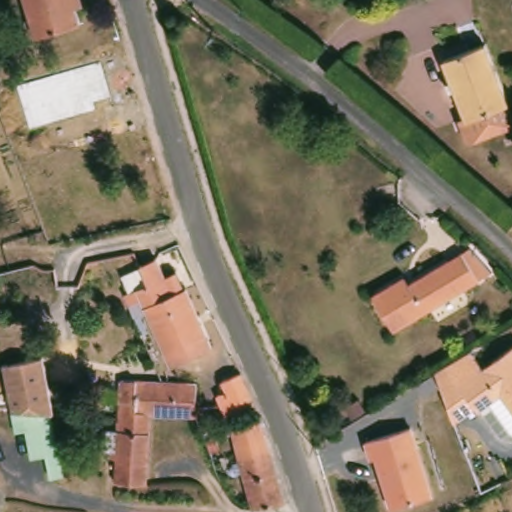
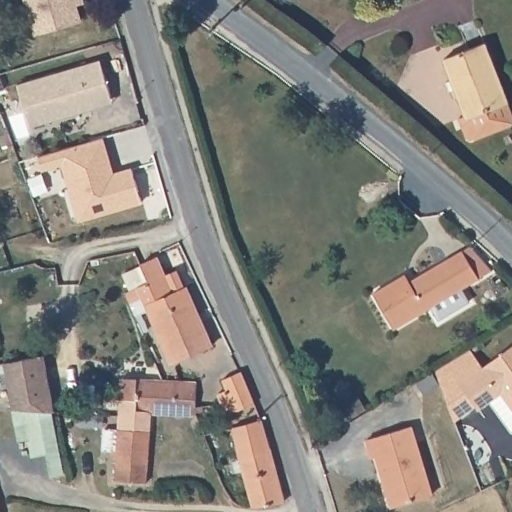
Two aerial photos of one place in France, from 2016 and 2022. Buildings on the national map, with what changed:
unchanged [(37,34),(27,0),(84,0),(85,3),(76,5),(81,21),(37,34)]
unchanged [(449,71),(441,50),(482,35),(504,95),(463,111),(462,107),(452,80),(447,82),(444,73),(449,71)]
new [(99,103),(27,124),(16,81),(100,57),(110,92),(111,99),(99,103)]
unchanged [(511,115),(468,132),(464,130),(456,109),(462,107),(463,111),(504,95),(511,115)]
new [(103,138),(108,156),(103,157),(109,176),(133,169),(142,202),(80,220),(64,165),(43,171),(39,156),(103,138)]
unchanged [(471,242),(492,267),(395,326),(374,290),(407,271),(411,278),(471,242)]
unchanged [(143,266),(159,259),(166,277),(179,271),(187,290),(188,289),(213,347),(173,365),(150,312),(143,314),(146,323),(139,326),(126,295),(140,289),(150,284),(143,266)]
unchanged [(446,389),(459,380),(450,366),(474,352),(487,370),(512,352),(512,406),(505,396),(483,413),(480,409),(459,424),(446,389)]
unchanged [(56,412),(50,412),(64,475),(49,478),(45,455),(30,457),(21,409),(12,409),(3,363),(44,355),(56,412)]
unchanged [(242,408),(241,407),(232,411),(223,390),(233,386),(228,376),(247,368),(260,400),(242,408)]
unchanged [(196,414),(150,411),(151,409),(136,408),(136,399),(120,398),(121,375),(163,377),(197,379),(196,411),(196,414)]
unchanged [(444,387),(427,397),(421,385),(437,375),(444,387)]
unchanged [(366,389),(377,382),(383,393),(372,399),(366,389)]
unchanged [(145,481),(114,478),(115,454),(110,454),(111,449),(103,448),(104,426),(118,427),(119,413),(120,398),(136,399),(136,408),(151,409),(150,411),(145,481)]
unchanged [(231,425),(254,419),(262,416),(283,499),(252,504),(231,425)]
unchanged [(371,454),(366,436),(410,423),(429,492),(390,504),(382,477),(375,453),(371,454)]

